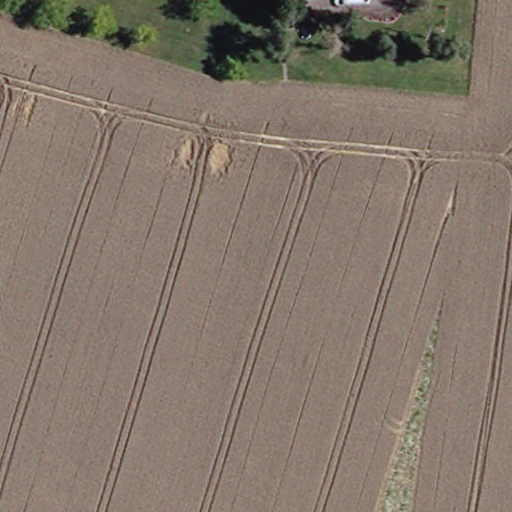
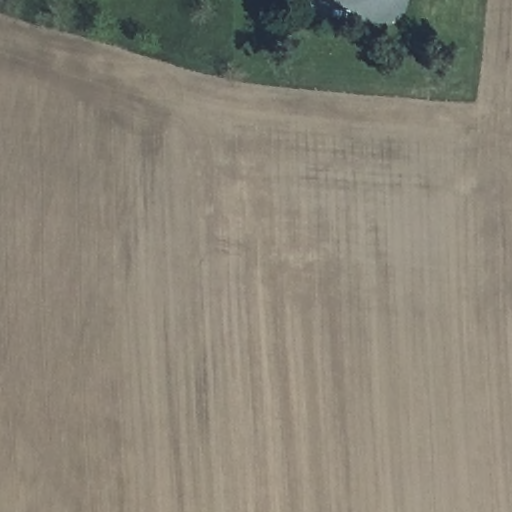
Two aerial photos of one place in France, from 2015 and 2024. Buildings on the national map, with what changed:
[]

